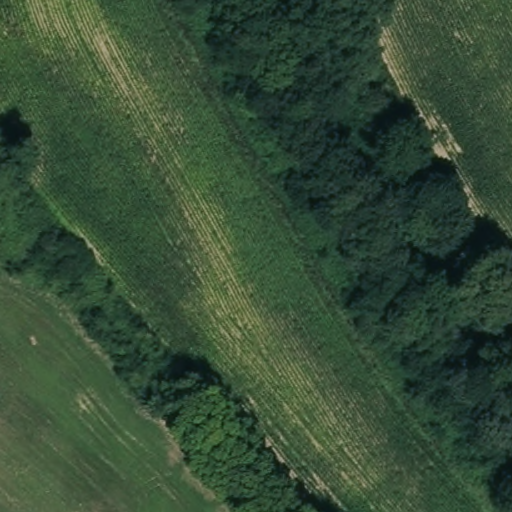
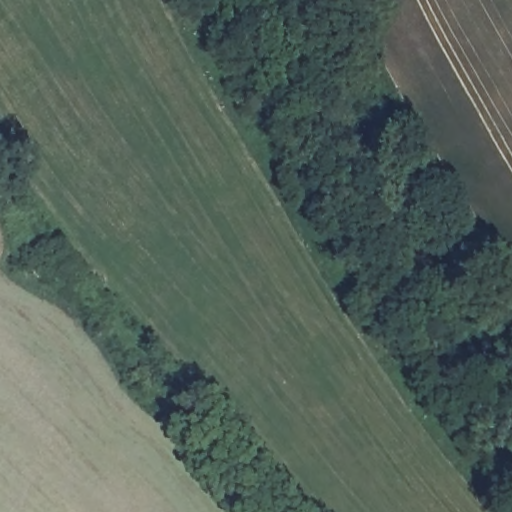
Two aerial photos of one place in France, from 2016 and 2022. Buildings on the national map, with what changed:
[]

